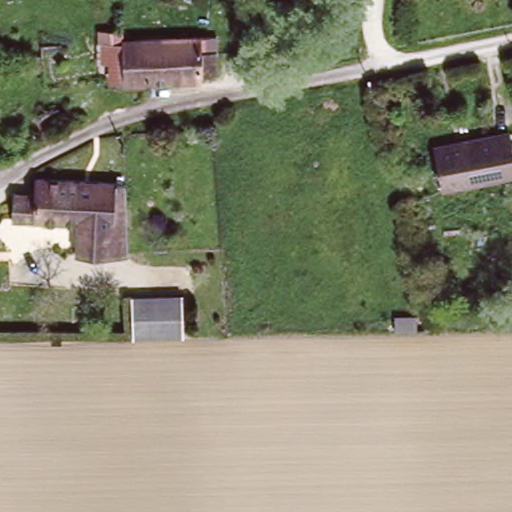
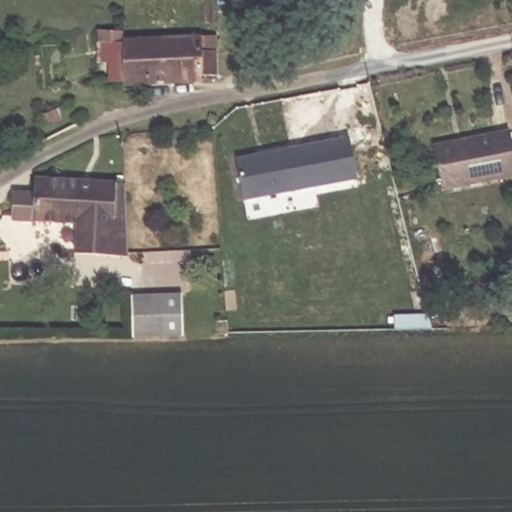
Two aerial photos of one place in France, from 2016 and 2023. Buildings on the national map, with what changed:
unchanged [(123,49),(123,45),(200,43),(200,46),(222,47),(222,74),(215,81),(201,81),(201,88),(123,87),(123,84),(123,49)]
unchanged [(123,84),(89,84),(89,49),(123,49),(123,84)]
unchanged [(435,155),(463,149),(462,144),(507,134),(512,152),(512,176),(443,192),(435,155)]
new [(350,138),(358,181),(297,192),(290,151),(350,138)]
new [(235,157),(290,149),(290,151),(297,192),(243,201),(235,157)]
unchanged [(79,231),(12,230),(12,200),(35,199),(35,186),(126,186),(128,260),(77,257),(79,231)]
unchanged [(132,296),(160,296),(178,296),(178,331),(160,332),(132,332),(132,296)]
unchanged [(396,321),(418,320),(431,320),(432,332),(419,332),(395,332),(396,321)]

